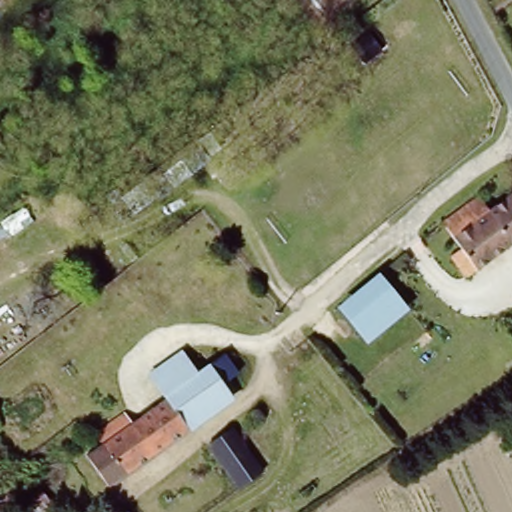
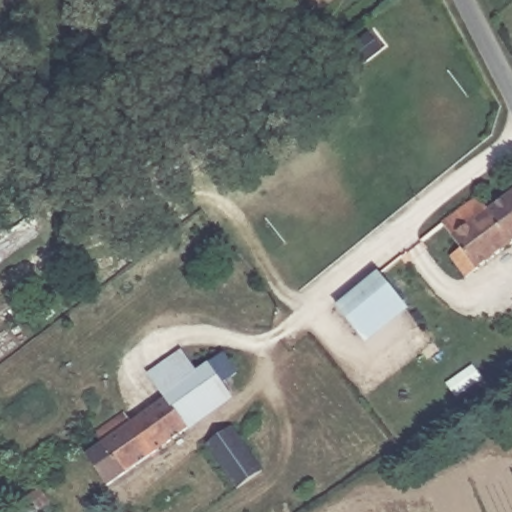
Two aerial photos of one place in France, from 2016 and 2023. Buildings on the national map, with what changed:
unchanged [(191,141),(210,163),(132,219),(115,196),(191,141)]
unchanged [(455,238),(445,222),(481,195),(493,212),(512,198),(512,246),(468,279),(462,283),(437,251),(455,238)]
unchanged [(379,275),(407,313),(365,344),(338,306),(379,275)]
unchanged [(108,488),(86,452),(97,445),(93,431),(126,413),(133,421),(156,404),(141,376),(180,349),(193,374),(221,355),(240,373),(223,393),(232,405),(108,488)]
unchanged [(228,434),(261,477),(239,495),(205,452),(228,434)]

